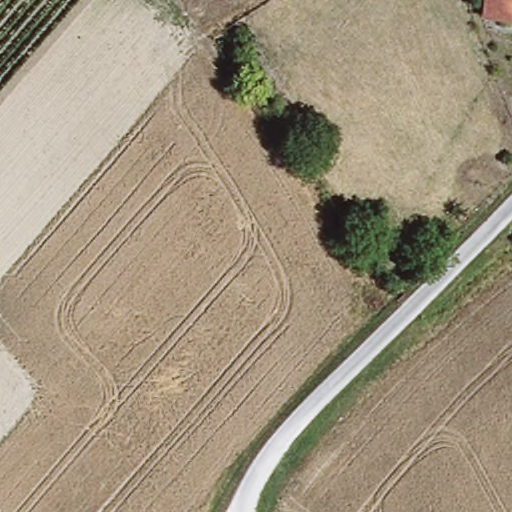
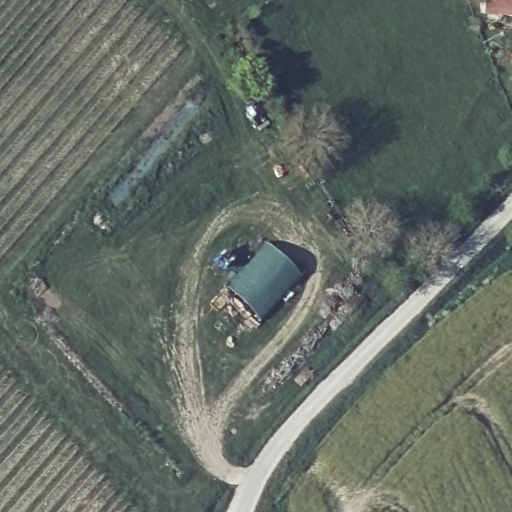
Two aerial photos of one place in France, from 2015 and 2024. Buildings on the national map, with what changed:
unchanged [(474,14),(477,0),(512,0),(512,20),(474,14)]
new [(265,240),(300,275),(261,320),(224,284),(265,240)]

